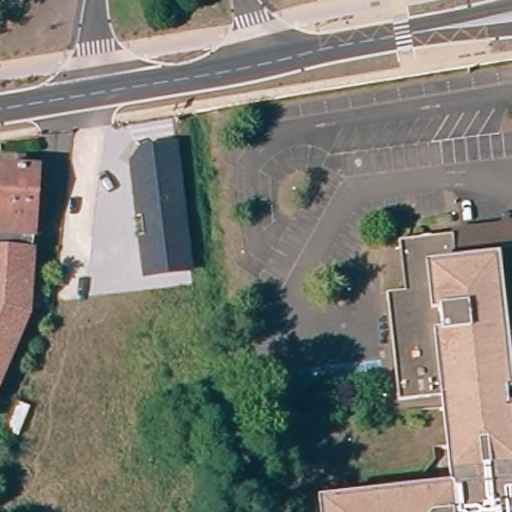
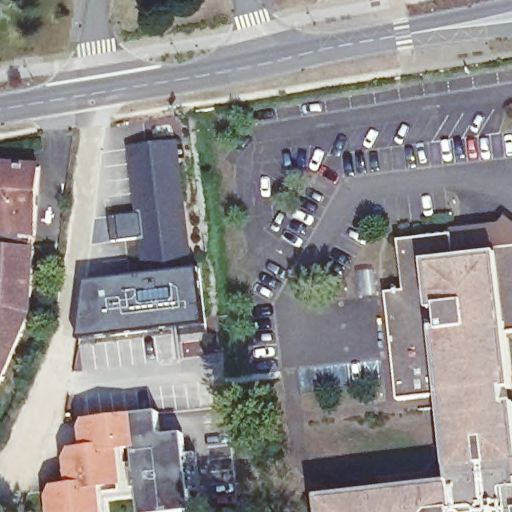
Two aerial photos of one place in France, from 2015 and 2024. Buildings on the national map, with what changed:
unchanged [(192,268),(146,273),(143,236),(145,236),(142,212),(140,212),(134,159),(146,145),(178,142),(192,268)]
unchanged [(36,262),(34,315),(0,384),(0,169),(39,170),(36,262)]
unchanged [(461,246),(512,240),(512,512),(314,512),(313,497),(453,480),(444,392),(402,398),(389,290),(408,287),(402,236),(461,228),(461,246)]
new [(197,270),(203,325),(79,340),(85,282),(146,277),(146,273),(192,268),(197,270)]
new [(140,512),(139,498),(105,502),(105,512),(49,512),(48,500),(54,487),(68,485),(66,461),(73,449),(81,447),(81,428),(86,420),(160,413),(162,433),(166,437),(186,435),(195,511),(185,512),(140,512)]

